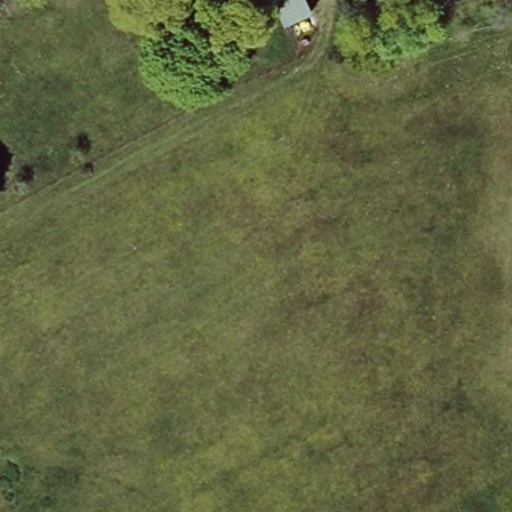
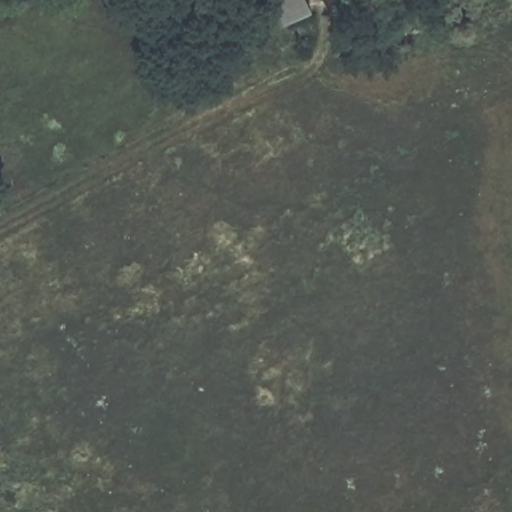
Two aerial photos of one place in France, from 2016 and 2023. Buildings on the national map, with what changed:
unchanged [(282,24),(272,0),(305,0),(311,13),(282,24)]

